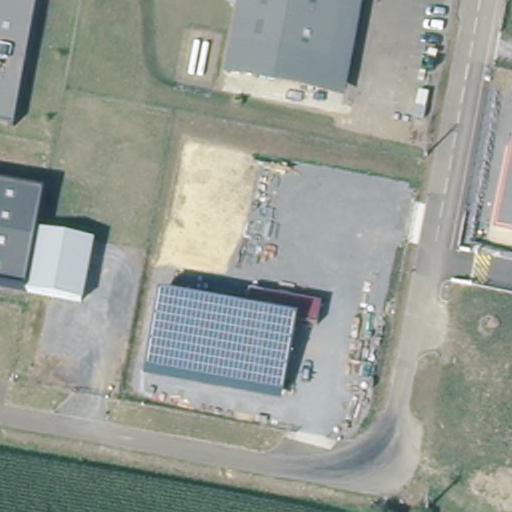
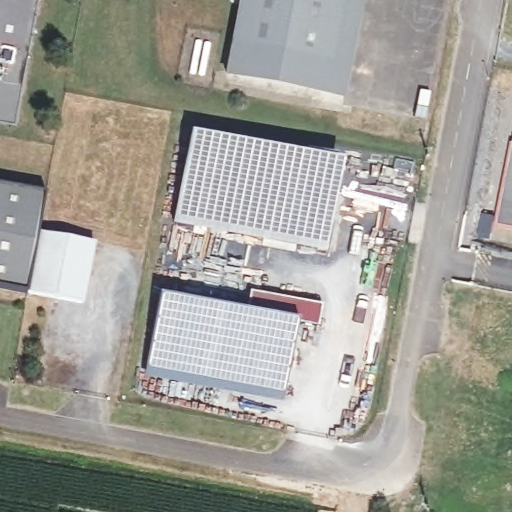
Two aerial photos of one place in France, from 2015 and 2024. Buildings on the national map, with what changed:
unchanged [(37,0),(14,127),(0,125),(0,0),(37,0)]
unchanged [(344,0),(364,0),(345,97),(227,73),(234,47),(330,66),(344,0)]
unchanged [(234,47),(243,0),(344,0),(330,66),(234,47)]
new [(191,134),(342,161),(325,252),(174,224),(191,134)]
unchanged [(512,146),(512,228),(496,225),(512,146)]
unchanged [(31,295),(0,289),(0,184),(50,193),(42,236),(31,295)]
unchanged [(98,246),(88,305),(31,295),(42,236),(98,246)]
unchanged [(245,317),(249,292),(320,305),(316,327),(295,326),(245,317)]
unchanged [(282,396),(142,370),(155,301),(295,326),(282,396)]

